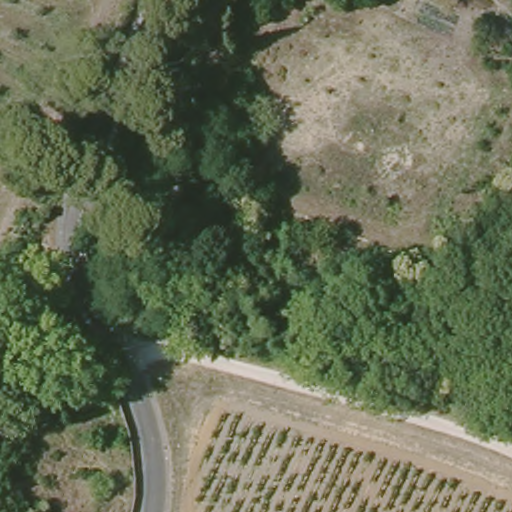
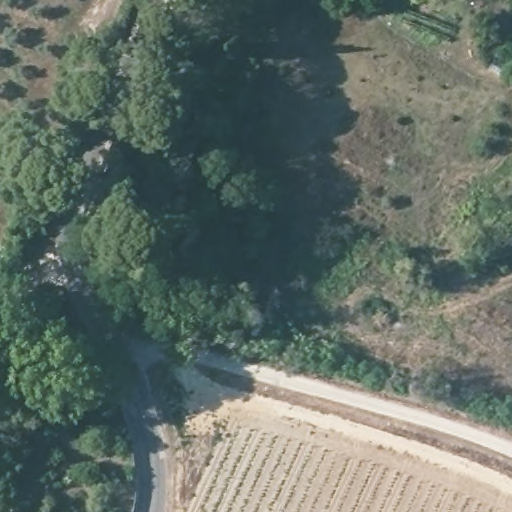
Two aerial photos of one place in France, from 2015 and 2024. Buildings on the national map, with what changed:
unchanged [(50,369),(77,378),(72,394),(45,387),(50,369)]

